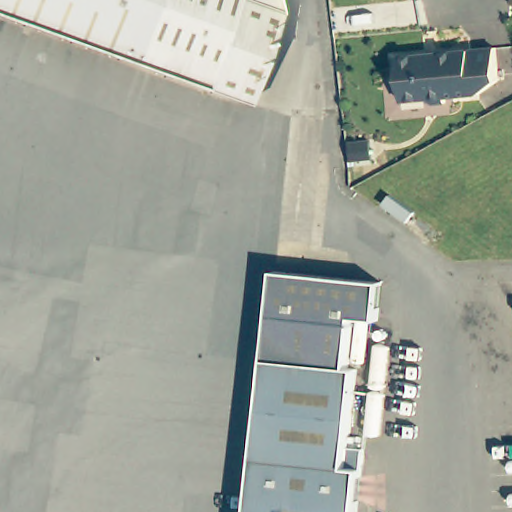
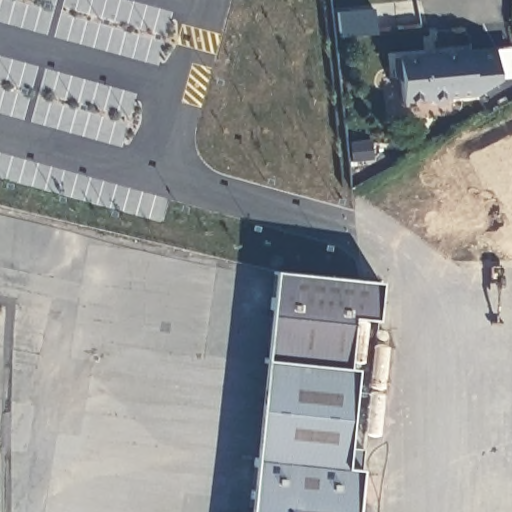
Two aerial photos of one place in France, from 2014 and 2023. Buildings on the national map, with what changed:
demolished [(249,102),(0,14),(0,0),(279,0),(281,10),(249,102)]
unchanged [(477,95),(444,97),(444,102),(431,104),(425,100),(400,101),(398,82),(393,77),(391,57),(493,47),(496,80),(477,95)]
unchanged [(349,141),(366,139),(368,159),(351,161),(349,141)]
unchanged [(273,270),(358,280),(379,281),(375,320),(360,318),(352,317),(269,308),(273,270)]
unchanged [(265,342),(269,308),(352,317),(347,368),(355,368),(347,447),(362,449),(356,512),(248,512),(264,359),(265,342)]

